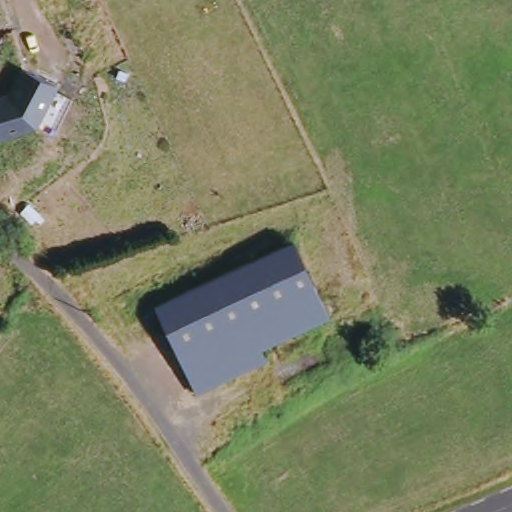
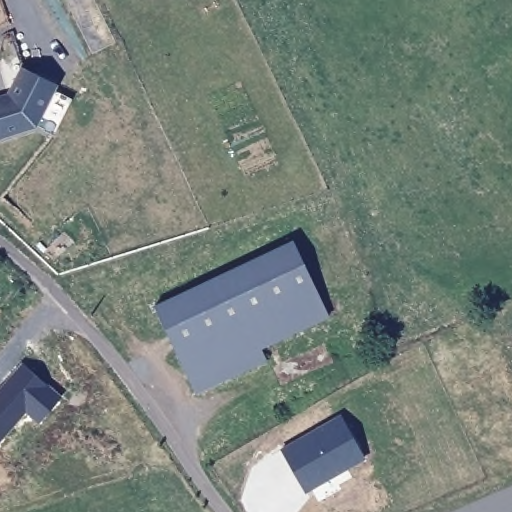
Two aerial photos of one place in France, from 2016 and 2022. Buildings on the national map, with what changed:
unchanged [(36,125),(0,137),(0,96),(7,95),(15,80),(21,67),(34,73),(56,84),(36,125)]
unchanged [(155,306),(290,241),(325,314),(260,345),(266,361),(196,393),(155,306)]
new [(23,365),(61,398),(40,423),(26,412),(0,441),(0,392),(23,365)]
new [(340,416),(365,457),(306,491),(282,450),(340,416)]

